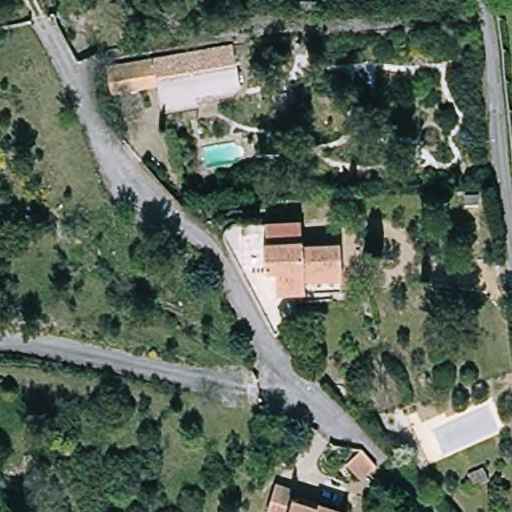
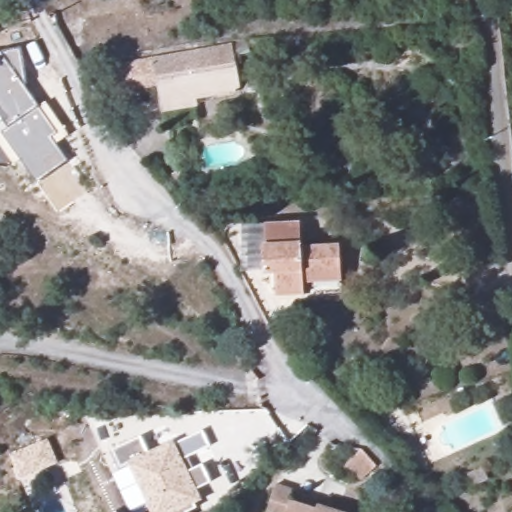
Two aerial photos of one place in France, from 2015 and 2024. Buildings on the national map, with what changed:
unchanged [(226,40),(238,97),(217,101),(215,95),(192,100),(192,107),(160,111),(154,86),(108,96),(98,73),(197,48),(226,40)]
new [(27,86),(24,85),(38,108),(45,103),(69,136),(56,145),(67,161),(36,183),(3,134),(0,131),(0,52),(21,48),(27,86)]
unchanged [(243,280),(227,249),(219,239),(225,230),(232,224),(241,221),(302,220),(302,249),(340,248),(342,292),(305,294),(273,334),(243,280)]
new [(196,508),(187,512),(152,512),(130,464),(120,469),(111,450),(140,435),(149,451),(174,439),(175,443),(202,430),(210,446),(188,456),(194,468),(203,464),(211,481),(197,488),(203,500),(194,504),(196,508)]
unchanged [(478,485),(471,472),(487,466),(492,478),(478,485)]
unchanged [(294,490),(291,501),(318,509),(321,504),(342,512),(268,512),(277,486),(294,490)]

